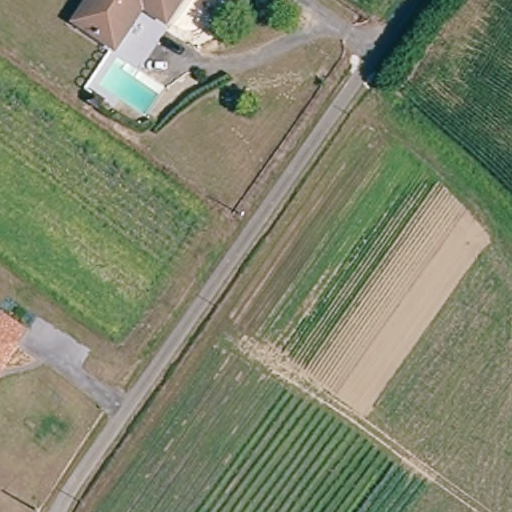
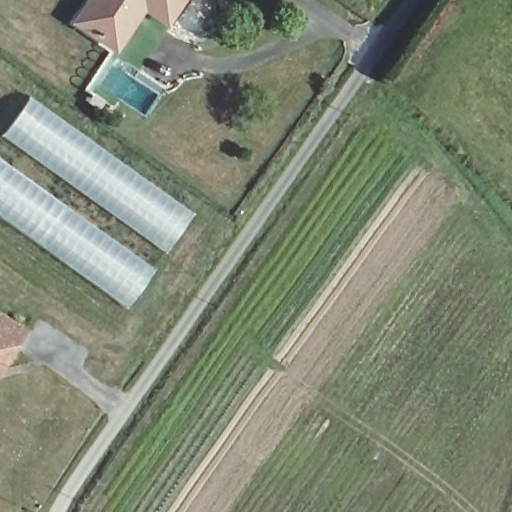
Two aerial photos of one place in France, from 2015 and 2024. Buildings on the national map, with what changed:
unchanged [(113,50),(73,22),(90,0),(181,0),(165,24),(143,9),(136,19),(113,50)]
new [(29,95),(163,190),(158,197),(181,214),(177,220),(183,224),(165,254),(0,136),(0,134),(29,95)]
new [(152,269),(124,308),(0,218),(0,161),(152,269)]
unchanged [(24,335),(4,363),(0,369),(0,318),(24,335)]

